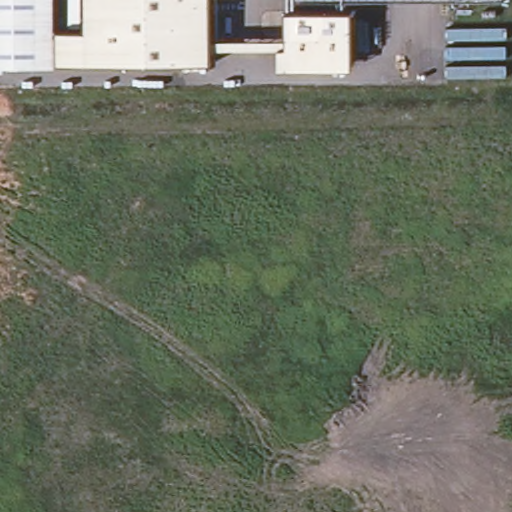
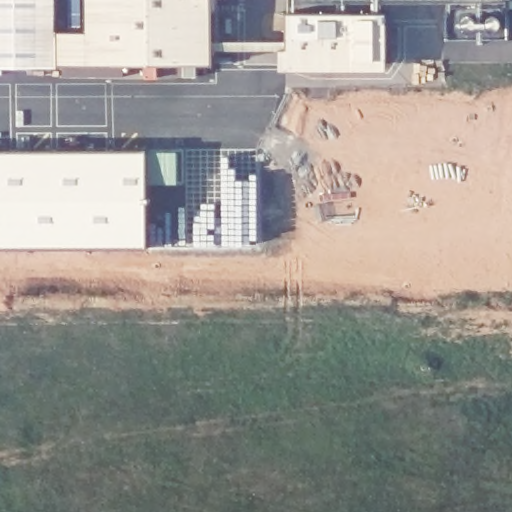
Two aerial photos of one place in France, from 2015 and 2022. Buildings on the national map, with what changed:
unchanged [(48,71),(0,70),(0,0),(47,0),(48,71)]
unchanged [(207,63),(52,66),(52,31),(80,31),(80,0),(207,0),(207,63)]
unchanged [(347,12),(347,64),(280,65),(280,12),(347,12)]
new [(145,150),(147,251),(0,250),(0,152),(145,150)]

